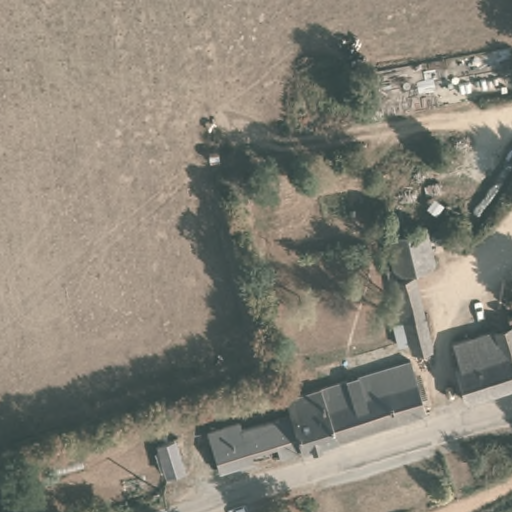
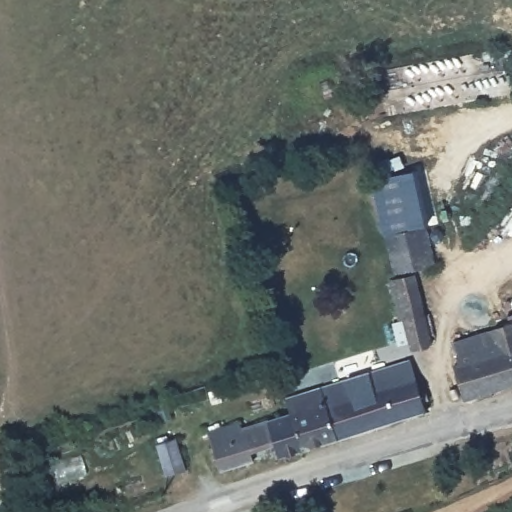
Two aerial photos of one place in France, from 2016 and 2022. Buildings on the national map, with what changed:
new [(425,232),(387,241),(382,234),(370,183),(413,171),(425,232)]
unchanged [(435,268),(396,278),(387,241),(425,232),(435,268)]
unchanged [(415,280),(435,343),(413,350),(392,286),(415,280)]
unchanged [(454,366),(462,364),(454,342),(512,323),(512,382),(464,397),(454,366)]
unchanged [(292,407),(288,396),(357,374),(411,359),(427,414),(308,452),(292,407)]
unchanged [(275,436),(251,443),(249,458),(220,467),(213,442),(222,438),(220,436),(219,431),(219,427),(222,423),(226,420),(230,420),(235,421),(238,431),(245,430),(245,424),(292,407),(308,452),(282,460),(275,436)]
unchanged [(181,475),(166,480),(157,450),(171,446),(181,475)]

